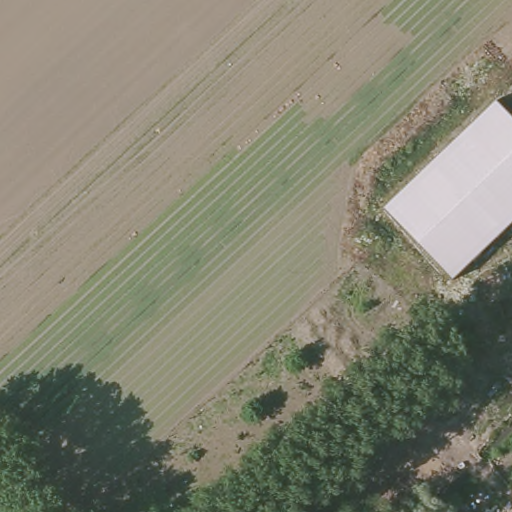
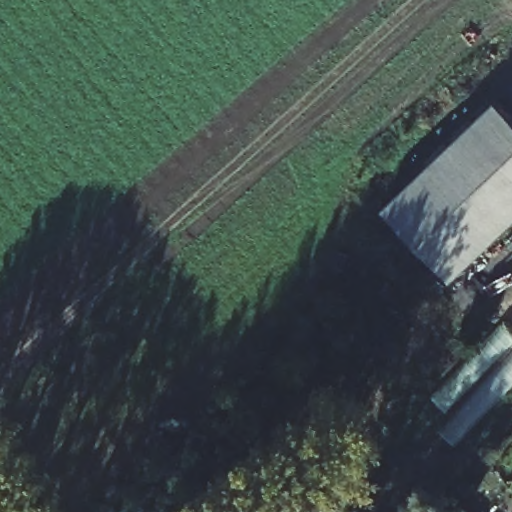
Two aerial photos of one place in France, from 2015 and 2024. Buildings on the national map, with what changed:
unchanged [(512,118),(512,221),(450,280),(385,209),(496,102),(512,118)]
new [(512,331),(512,383),(455,444),(439,429),(453,414),(433,395),(501,321),(512,331)]
unchanged [(461,512),(454,512),(457,510),(461,512)]

